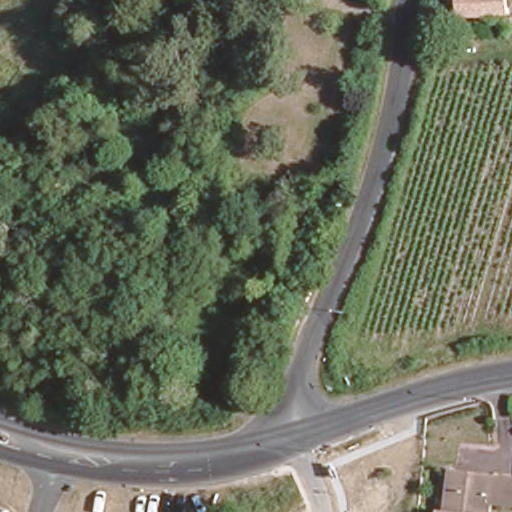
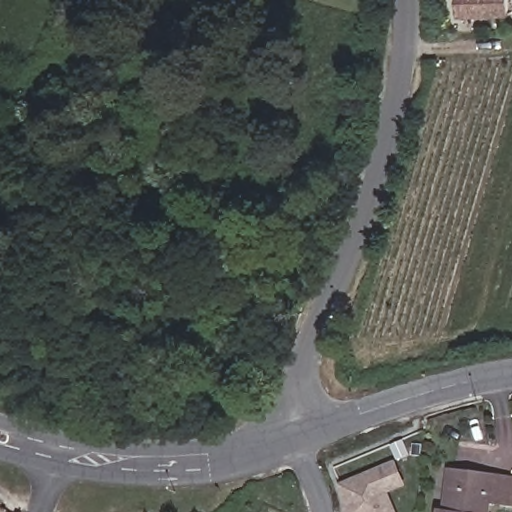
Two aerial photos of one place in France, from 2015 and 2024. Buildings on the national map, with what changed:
unchanged [(457,12),(457,0),(503,0),(503,10),(457,12)]
new [(345,506),(337,486),(395,461),(406,486),(389,494),(398,512),(345,512),(345,506)]
unchanged [(437,507),(446,508),(452,465),(512,477),(512,508),(487,504),(487,512),(437,512),(437,507)]

